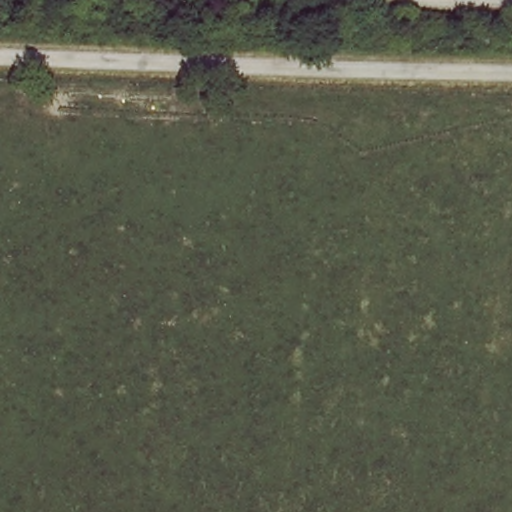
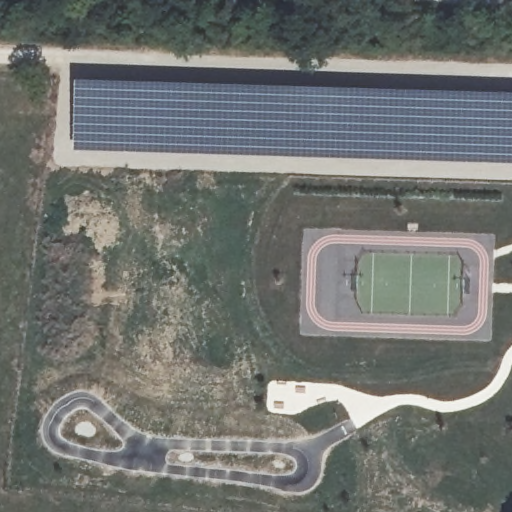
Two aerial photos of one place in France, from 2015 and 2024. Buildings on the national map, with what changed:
new [(75,79),(294,88),(410,89),(512,93),(512,164),(501,163),(418,163),(409,163),(366,159),(73,149),(75,79)]

